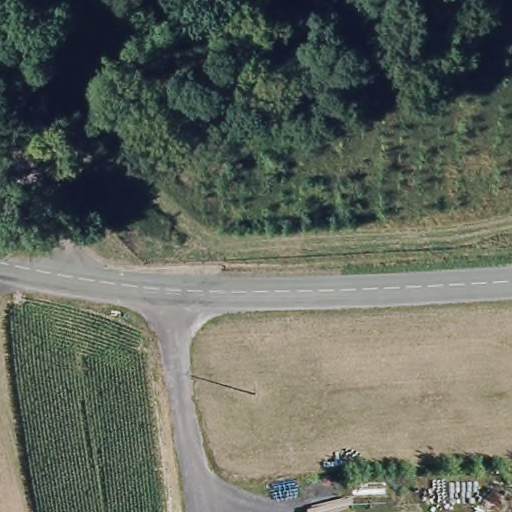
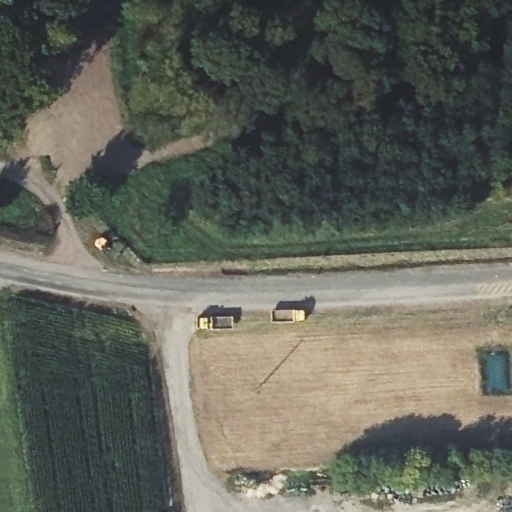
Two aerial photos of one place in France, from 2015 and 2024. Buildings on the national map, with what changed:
[]

